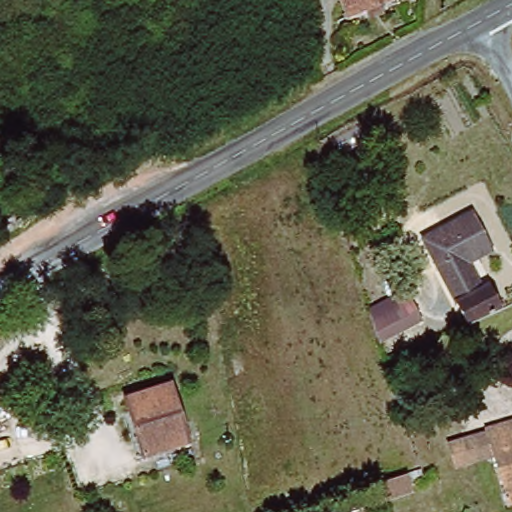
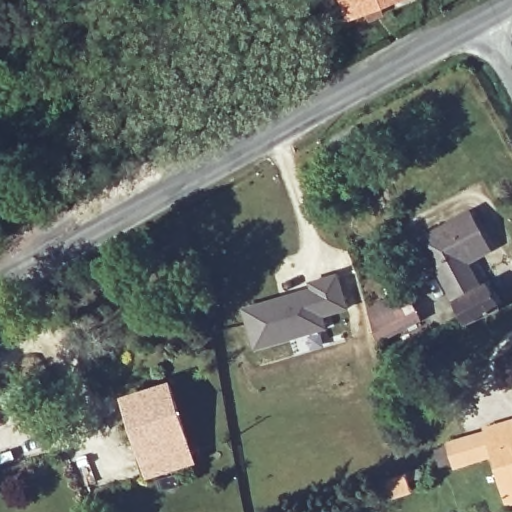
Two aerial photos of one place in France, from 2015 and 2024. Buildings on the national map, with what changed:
unchanged [(349,24),(336,0),(387,0),(381,4),(349,24)]
unchanged [(490,285),(502,306),(469,324),(424,247),(474,221),(491,251),(469,265),(483,288),(490,285)]
new [(289,293),(338,273),(348,311),(325,318),(327,330),(253,353),(240,308),(289,293)]
unchanged [(375,318),(406,300),(422,326),(391,346),(375,318)]
unchanged [(190,444),(140,460),(123,402),(173,388),(190,444)]
unchanged [(504,489),(494,450),(464,457),(458,438),(489,430),(488,424),(512,419),(512,499),(507,500),(504,489)]
unchanged [(407,500),(379,507),(373,489),(403,482),(407,500)]

